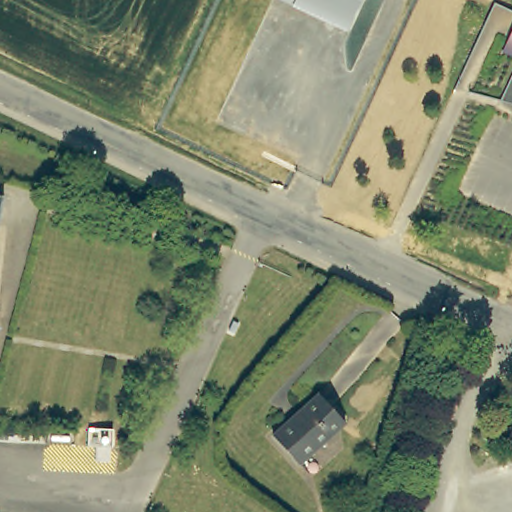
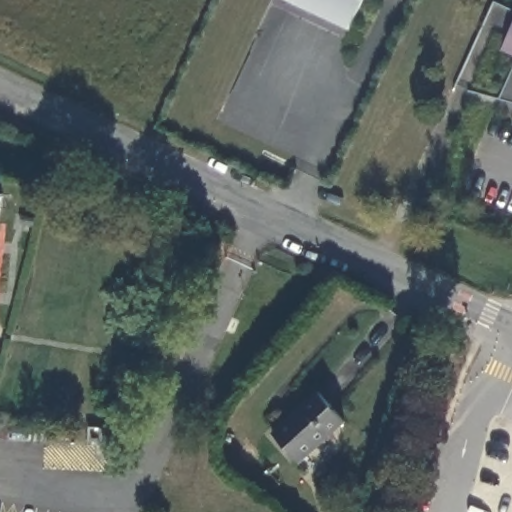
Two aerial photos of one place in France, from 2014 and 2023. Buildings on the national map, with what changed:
unchanged [(282,0),(362,0),(347,32),(282,0)]
unchanged [(451,83),(490,0),(492,0),(512,9),(512,100),(451,83)]
unchanged [(7,193),(0,236),(0,192),(1,192),(7,193)]
unchanged [(319,388),(347,417),(301,459),(273,430),(319,388)]

